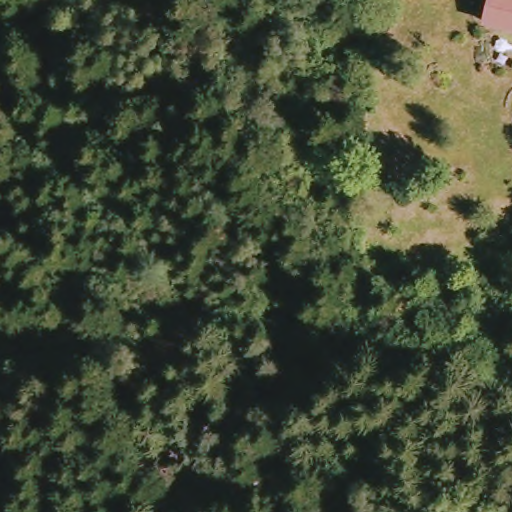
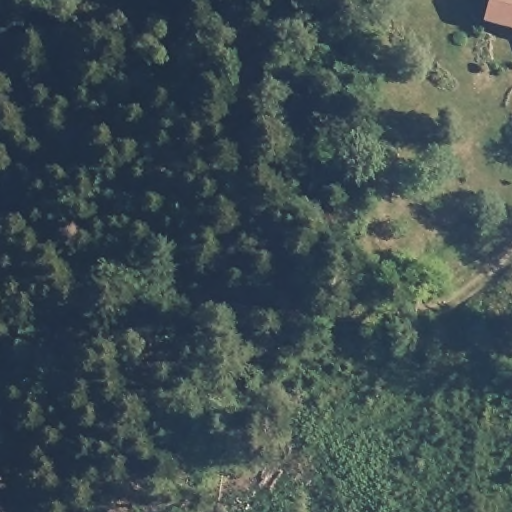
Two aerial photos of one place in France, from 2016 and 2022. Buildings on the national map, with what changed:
unchanged [(496,0),(512,0),(512,32),(497,28),(488,26),(496,0)]

